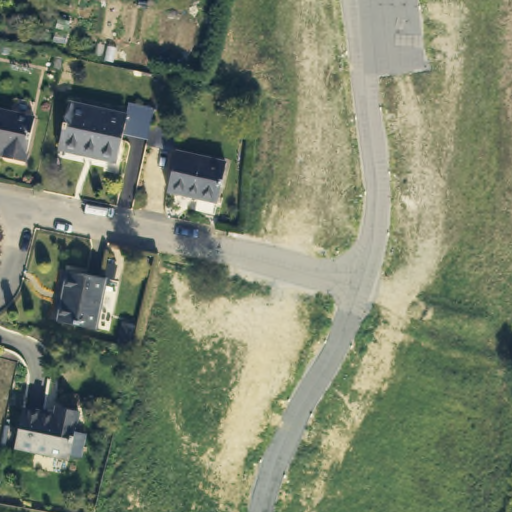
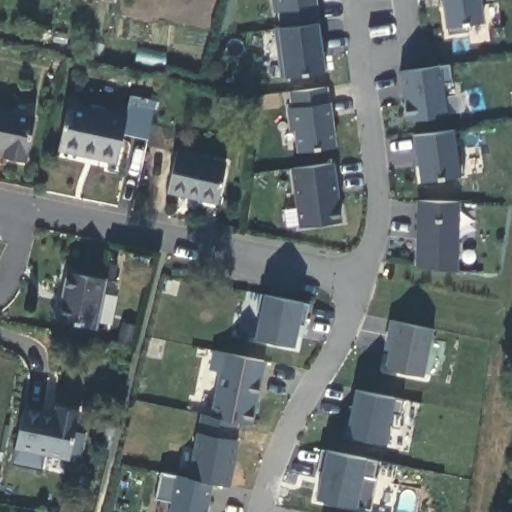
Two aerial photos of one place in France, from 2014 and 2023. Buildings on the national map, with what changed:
unchanged [(273,13),(271,0),(314,0),(316,22),(281,27),(278,12),(273,13)]
new [(493,0),(493,1),(481,5),(484,22),(466,25),(468,31),(449,34),(443,0),(493,0)]
new [(399,72),(449,66),(451,83),(442,84),(448,115),(406,120),(399,72)]
unchanged [(294,132),(289,132),(286,107),(291,107),(289,94),(327,88),(329,103),(335,148),(297,153),(294,132)]
unchanged [(132,114),(126,112),(130,95),(179,106),(171,150),(147,145),(147,141),(126,136),(132,114)]
unchanged [(65,141),(74,100),(132,114),(121,160),(98,155),(63,147),(65,141)]
unchanged [(2,144),(0,143),(0,107),(41,116),(32,158),(10,153),(0,151),(2,144)]
new [(414,135),(453,130),(459,176),(420,181),(414,135)]
unchanged [(227,201),(177,190),(186,151),(236,162),(227,201)]
new [(291,170),(332,164),(340,221),(299,227),(291,170)]
unchanged [(416,201),(458,201),(457,271),(415,266),(416,201)]
unchanged [(99,330),(60,322),(70,273),(109,280),(99,330)]
new [(304,325),(298,323),(294,346),(254,339),(262,295),(302,303),(308,305),(304,325)]
new [(389,351),(383,350),(388,321),(432,330),(423,377),(385,370),(389,351)]
new [(171,503),(155,500),(160,472),(187,477),(200,414),(211,416),(220,371),(208,368),(211,350),(264,360),(251,423),(236,421),(232,438),(239,440),(229,485),(213,481),(206,512),(169,512),(171,503)]
new [(353,391),(403,401),(400,415),(393,415),(387,443),(346,436),(353,391)]
unchanged [(71,456),(19,445),(27,407),(57,413),(59,404),(82,409),(71,456)]
new [(365,460),(376,462),(373,476),(363,474),(356,508),(315,498),(326,451),(365,460)]

